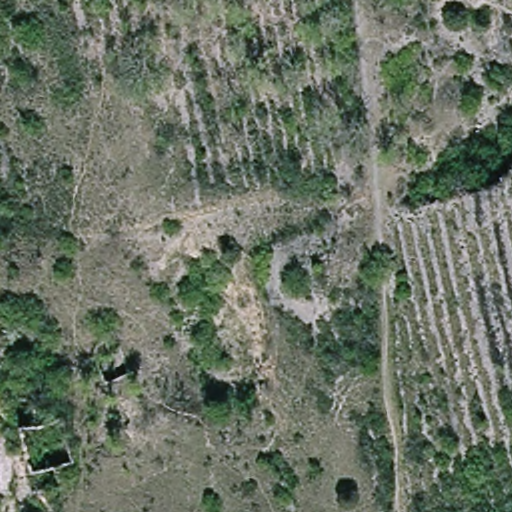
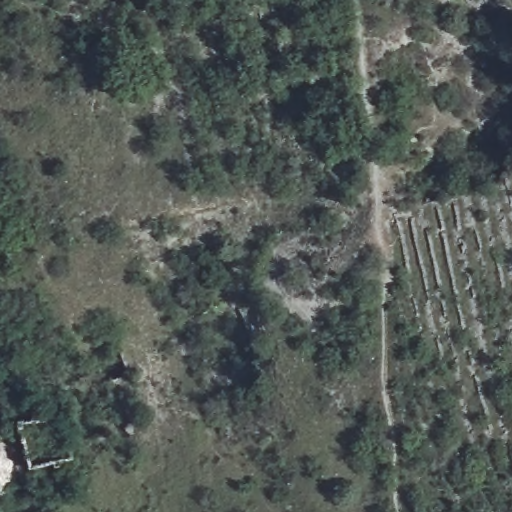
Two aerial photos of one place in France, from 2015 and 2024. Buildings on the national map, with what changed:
[]

